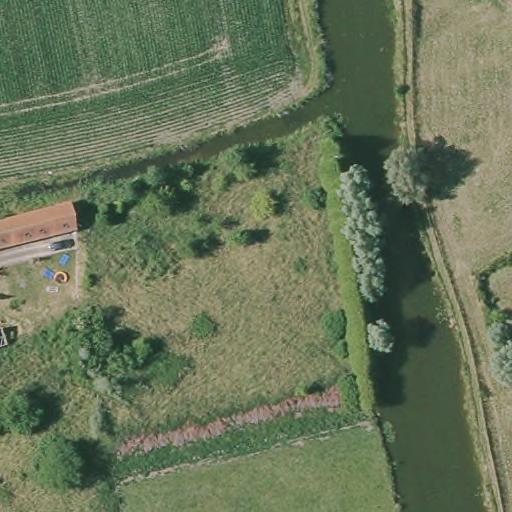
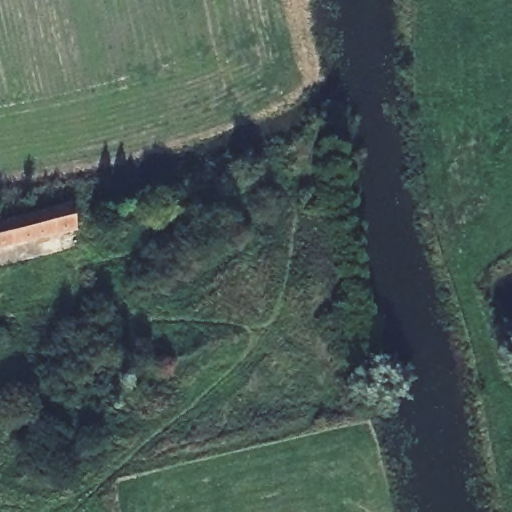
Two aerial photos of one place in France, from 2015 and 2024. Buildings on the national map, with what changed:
unchanged [(0,251),(0,222),(73,199),(80,226),(0,251)]
unchanged [(4,330),(9,346),(10,351),(0,355),(0,332),(4,330)]

